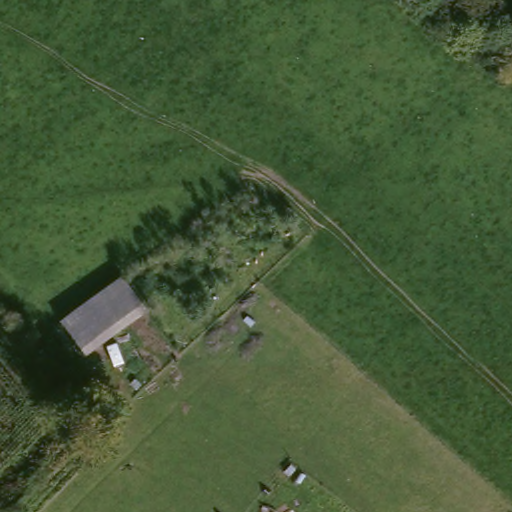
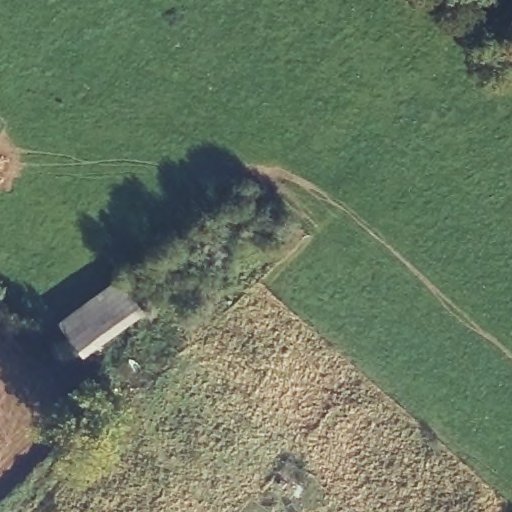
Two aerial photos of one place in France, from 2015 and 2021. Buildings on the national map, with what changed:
unchanged [(123,277),(149,310),(89,351),(62,320),(123,277)]

